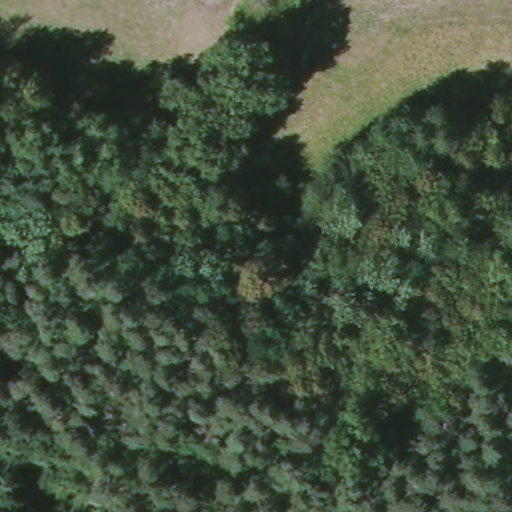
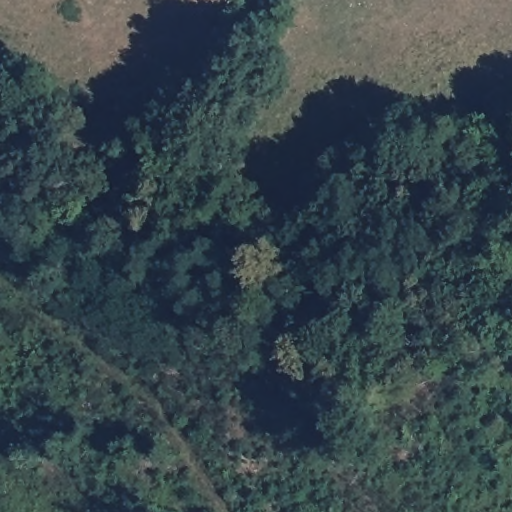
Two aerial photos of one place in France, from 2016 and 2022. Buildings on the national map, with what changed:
unchanged [(270,0),(284,0),(283,2),(270,2),(270,0)]

